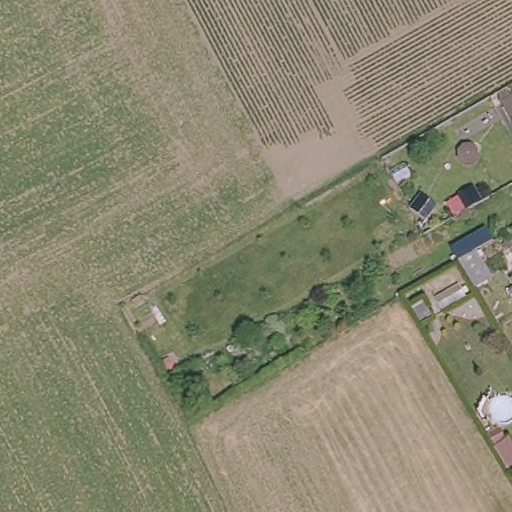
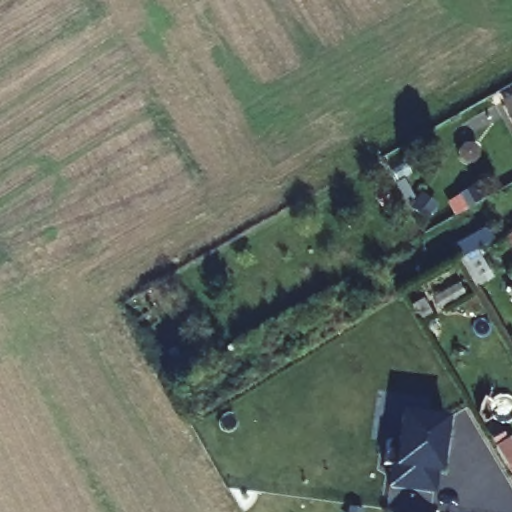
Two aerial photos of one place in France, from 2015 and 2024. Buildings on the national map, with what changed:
new [(512,277),(512,287),(507,280),(512,277)]
new [(512,291),(512,305),(505,295),(512,291)]
new [(447,419),(444,443),(441,442),(439,454),(442,455),(440,472),(437,471),(434,491),(390,485),(393,465),(384,463),(387,440),(400,441),(404,412),(447,419)]
unchanged [(512,470),(512,473),(511,471),(512,470)]

